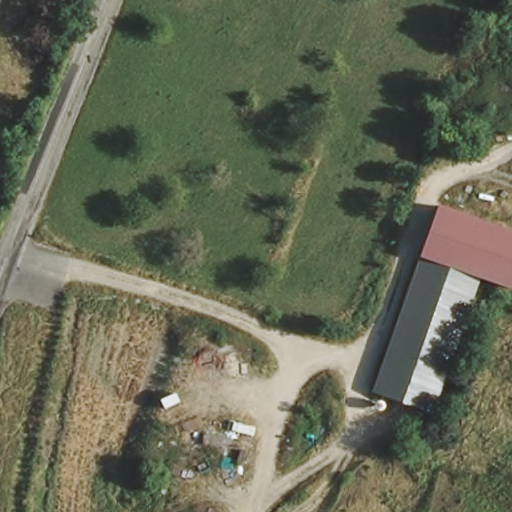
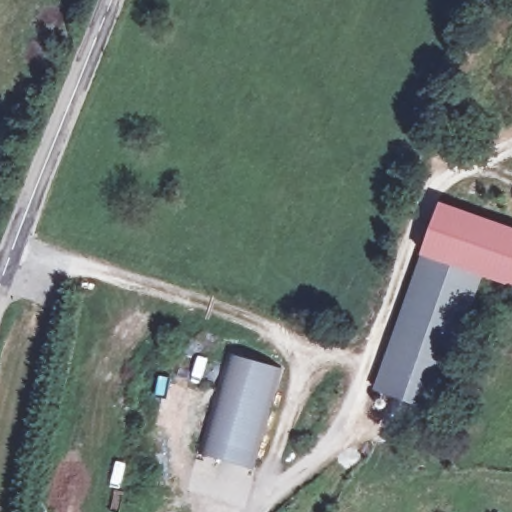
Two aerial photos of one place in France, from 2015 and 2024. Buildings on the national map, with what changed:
unchanged [(422,256),(440,205),(512,229),(512,287),(422,256)]
unchanged [(434,412),(376,392),(422,258),(480,278),(434,412)]
new [(225,354),(280,368),(252,468),(199,454),(225,354)]

